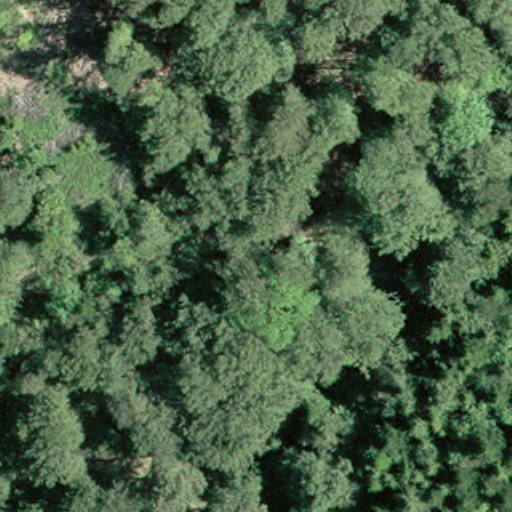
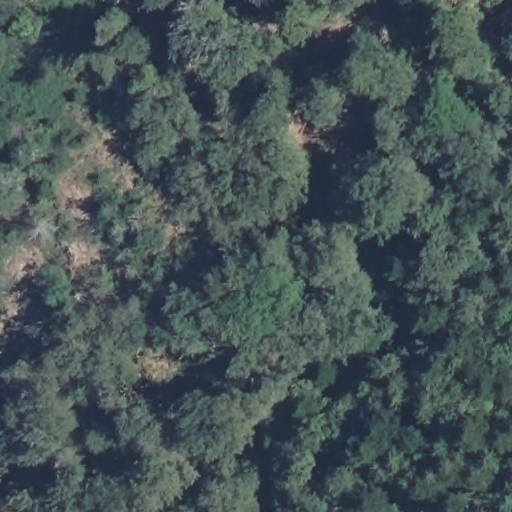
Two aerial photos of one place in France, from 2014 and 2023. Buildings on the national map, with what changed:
[]

